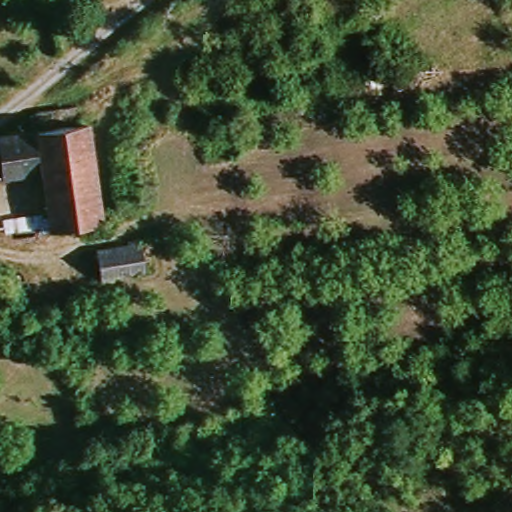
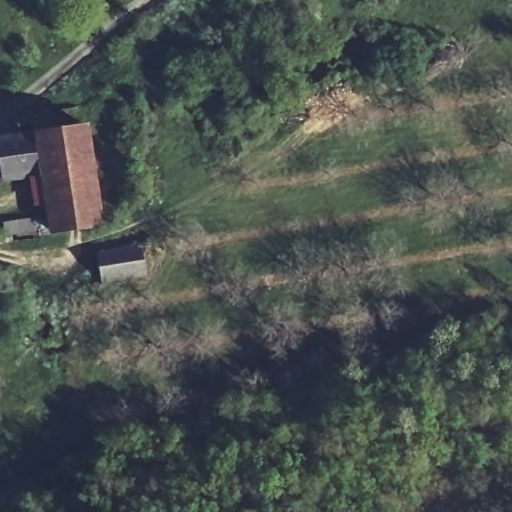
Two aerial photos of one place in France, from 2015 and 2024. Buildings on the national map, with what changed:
unchanged [(0,149),(0,135),(81,125),(95,224),(50,230),(42,173),(3,176),(0,149)]
unchanged [(90,278),(100,276),(96,252),(140,245),(146,278),(91,287),(90,278)]

